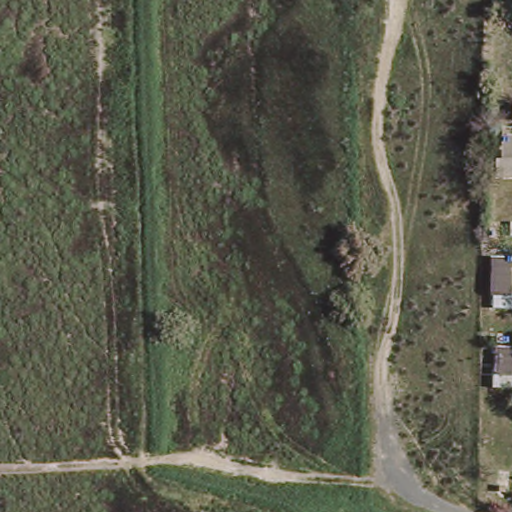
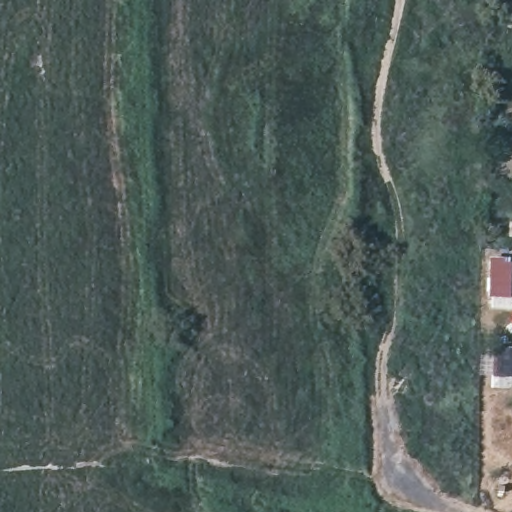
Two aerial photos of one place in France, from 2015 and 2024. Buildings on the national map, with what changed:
unchanged [(512,146),(512,185),(497,185),(497,169),(500,168),(501,146),(512,146)]
unchanged [(491,295),(493,256),(512,258),(512,295),(491,295)]
unchanged [(487,314),(490,295),(512,296),(512,316),(487,314)]
unchanged [(500,385),(500,346),(512,347),(512,386),(500,385)]

